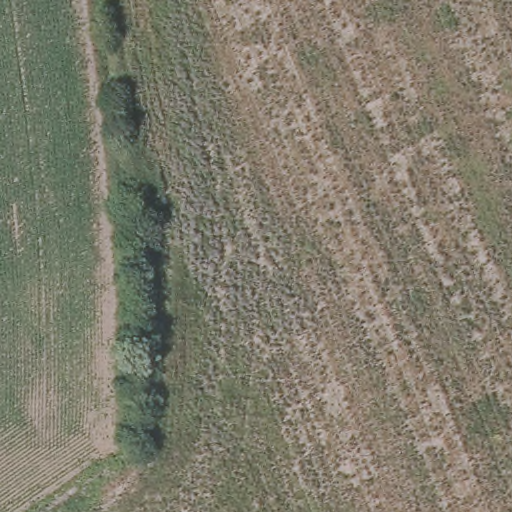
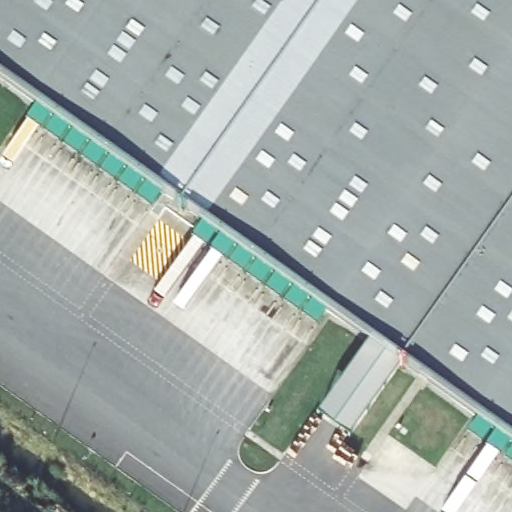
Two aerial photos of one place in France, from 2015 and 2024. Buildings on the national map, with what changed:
new [(0,87),(0,0),(512,0),(512,433),(0,87)]
new [(370,337),(402,358),(349,433),(319,411),(370,337)]

